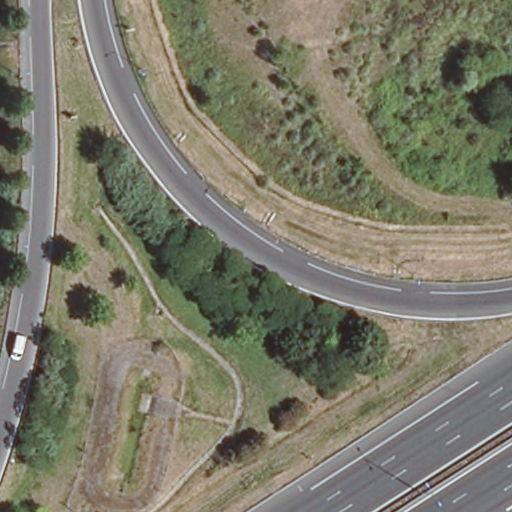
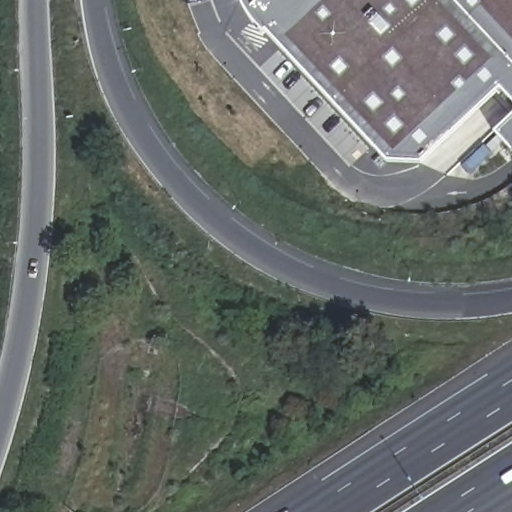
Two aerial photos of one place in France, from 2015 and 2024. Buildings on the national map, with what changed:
new [(420,161),(388,162),(251,18),(239,0),(512,0),(512,101),(500,89),(420,161)]
new [(512,116),(512,157),(492,134),(512,116)]

